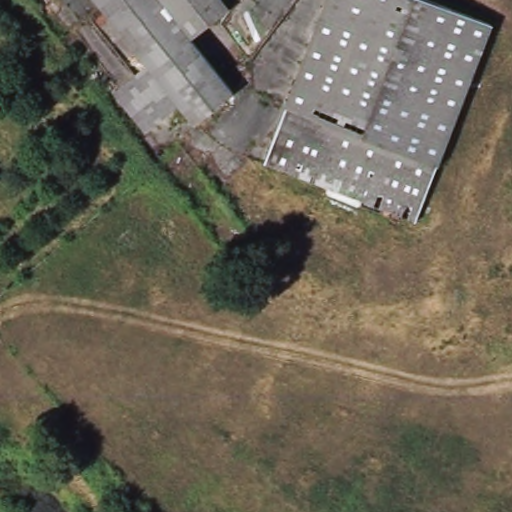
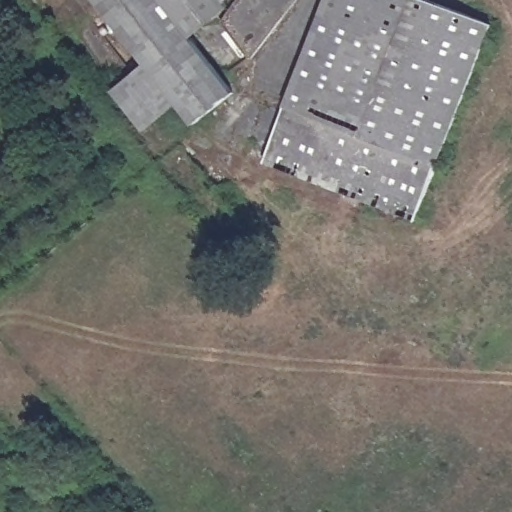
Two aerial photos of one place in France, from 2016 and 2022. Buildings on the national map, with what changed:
unchanged [(234,87),(194,119),(178,100),(146,60),(98,0),(164,0),(192,34),(234,87)]
unchanged [(192,34),(164,0),(228,0),(230,3),(192,34)]
unchanged [(324,0),(445,0),(491,18),(415,215),(263,158),(324,0)]
unchanged [(178,100),(145,126),(114,86),(146,60),(178,100)]
unchanged [(408,234),(256,176),(263,158),(415,215),(408,234)]

